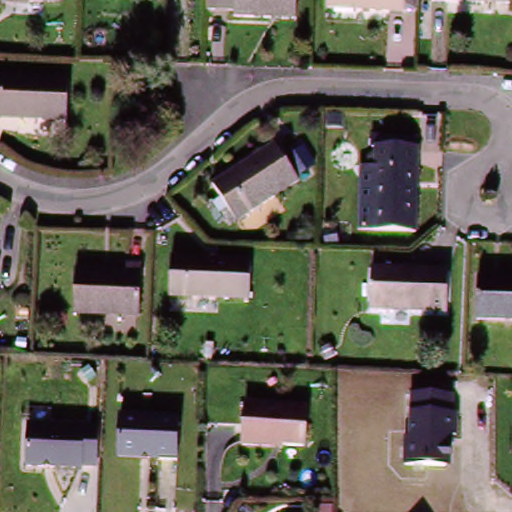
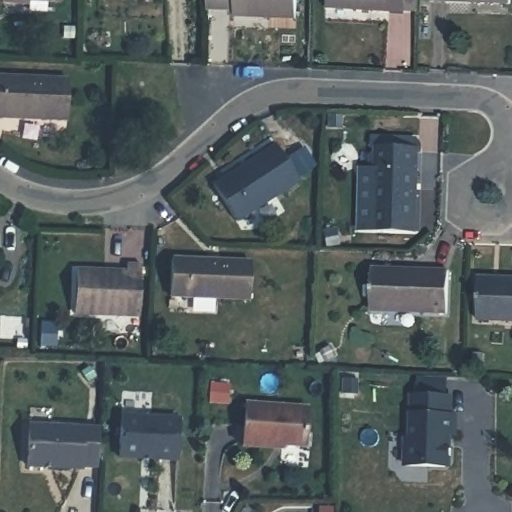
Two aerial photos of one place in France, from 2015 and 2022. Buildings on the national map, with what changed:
unchanged [(232,13),(206,11),(207,0),(292,0),(291,17),(232,13)]
unchanged [(327,2),(327,0),(400,0),(400,8),(327,2)]
unchanged [(437,6),(437,0),(509,0),(509,3),(437,6)]
unchanged [(0,83),(67,86),(66,120),(0,117),(0,83)]
unchanged [(360,165),(375,165),(376,145),(420,146),(415,226),(372,224),(357,223),(360,165)]
unchanged [(268,146),(291,181),(232,220),(209,185),(268,146)]
unchanged [(172,261),(249,265),(247,300),(171,296),(172,261)]
unchanged [(126,262),(138,262),(136,314),(75,312),(76,268),(126,270),(126,262)]
unchanged [(372,308),(374,268),(447,271),(445,312),(372,308)]
unchanged [(467,315),(470,276),(512,279),(512,319),(467,315)]
unchanged [(404,465),(404,437),(408,438),(409,395),(455,396),(456,413),(459,413),(458,435),(452,435),(452,468),(404,465)]
unchanged [(240,447),(244,402),(302,406),(300,446),(270,444),(270,449),(240,447)]
unchanged [(119,420),(178,422),(176,463),(117,460),(119,420)]
unchanged [(99,428),(97,471),(26,468),(26,425),(99,428)]

